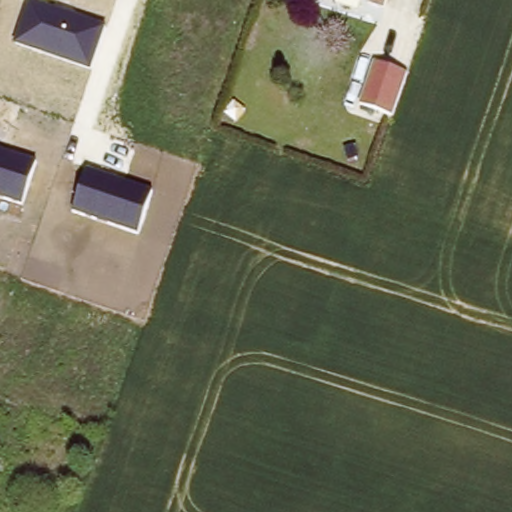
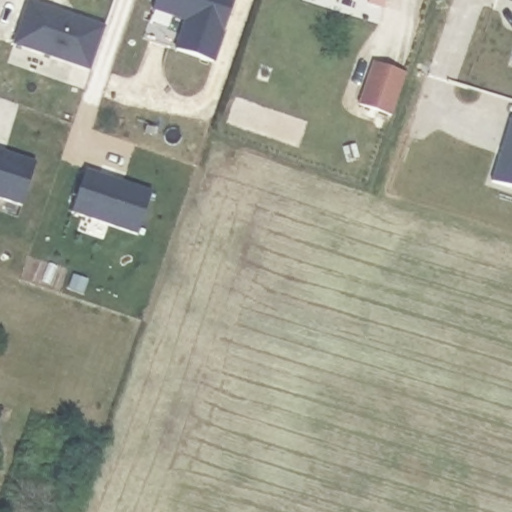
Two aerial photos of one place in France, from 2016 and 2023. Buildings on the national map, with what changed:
new [(215,62),(176,50),(185,21),(155,12),(159,0),(236,0),(215,62)]
unchanged [(390,8),(374,3),(374,0),(392,0),(390,8)]
unchanged [(14,45),(29,2),(106,27),(90,72),(14,45)]
demolished [(0,64),(0,24),(12,28),(0,64)]
unchanged [(373,61),(407,72),(392,116),(359,106),(373,61)]
new [(512,118),(512,187),(492,182),(512,118)]
unchanged [(0,149),(39,161),(23,207),(0,199),(0,149)]
unchanged [(86,169),(154,192),(137,237),(72,213),(86,169)]

